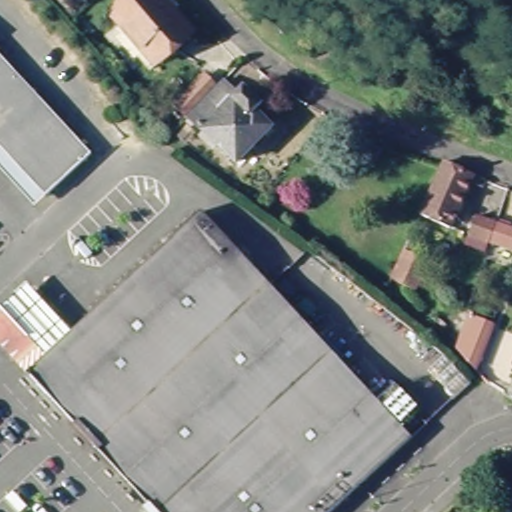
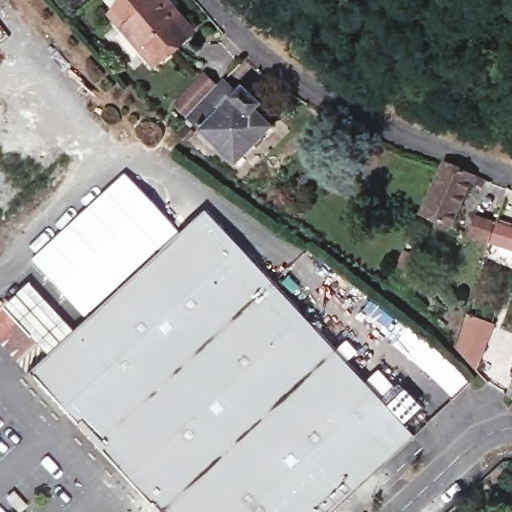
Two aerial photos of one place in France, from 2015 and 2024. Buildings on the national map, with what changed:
unchanged [(163,0),(198,40),(164,70),(121,20),(136,7),(130,0),(163,0)]
demolished [(90,154),(44,197),(0,148),(0,56),(90,154)]
unchanged [(236,95),(242,88),(247,93),(208,134),(188,116),(189,115),(176,103),(205,73),(218,85),(222,81),(236,95)]
unchanged [(259,104),(252,111),(270,129),(238,162),(208,134),(247,93),(259,104)]
demolished [(100,133),(104,129),(117,142),(112,146),(100,133)]
unchanged [(477,189),(465,184),(444,229),(415,217),(439,165),(440,163),(481,180),(477,189)]
new [(82,317),(30,259),(124,174),(176,232),(82,317)]
unchanged [(512,221),(512,248),(494,242),(472,233),(479,211),(501,219),(502,220),(503,219),(512,221)]
unchanged [(206,213),(414,440),(335,512),(154,512),(28,376),(48,358),(74,334),(206,213)]
unchanged [(427,263),(414,290),(391,279),(404,252),(427,263)]
unchanged [(74,334),(48,358),(4,309),(30,285),(74,334)]
unchanged [(468,317),(485,324),(475,353),(458,347),(468,317)]
new [(411,327),(460,373),(445,389),(396,342),(411,327)]
unchanged [(512,387),(512,395),(509,394),(512,387)]

